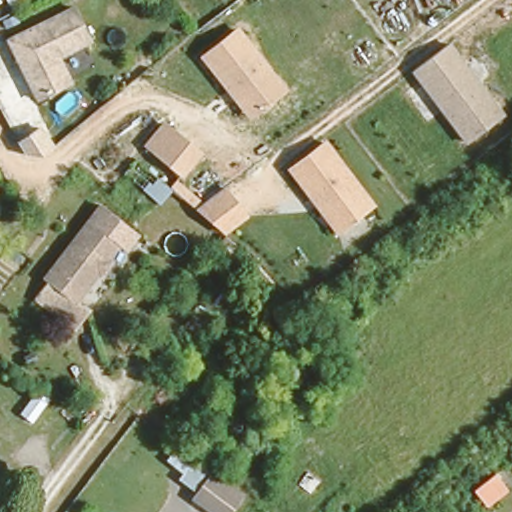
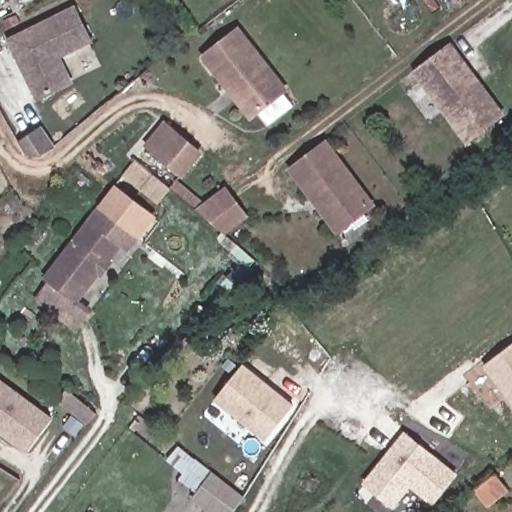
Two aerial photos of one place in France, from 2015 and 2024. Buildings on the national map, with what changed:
unchanged [(75,10),(90,39),(57,55),(70,81),(36,98),(7,40),(75,10)]
unchanged [(199,56),(238,25),(290,90),(249,121),(199,56)]
unchanged [(431,56),(447,45),(503,115),(469,139),(412,70),(431,56)]
unchanged [(164,120),(202,151),(180,177),(143,145),(164,120)]
new [(39,129),(54,147),(43,157),(24,155),(17,142),(39,129)]
unchanged [(323,145),(373,204),(340,230),(290,170),(323,145)]
unchanged [(225,183),(250,216),(224,235),(193,207),(225,183)]
unchanged [(100,203),(142,235),(130,250),(121,244),(89,219),(100,203)]
unchanged [(89,219),(121,244),(98,269),(109,281),(100,300),(84,285),(77,298),(50,278),(42,272),(89,219)]
unchanged [(78,302),(91,312),(77,328),(35,300),(50,278),(77,298),(78,302)]
new [(496,366),(492,361),(512,345),(512,405),(488,373),(496,366)]
new [(244,364),(294,407),(266,440),(216,396),(244,364)]
new [(25,452),(0,434),(0,379),(51,416),(25,452)]
new [(404,436),(457,476),(434,505),(411,487),(394,510),(365,486),(404,436)]
unchanged [(217,512),(214,512),(186,487),(207,461),(237,486),(217,512)]
new [(474,492),(493,475),(506,490),(487,507),(474,492)]
demolished [(478,481),(491,496),(472,512),(470,512),(458,498),(478,481)]

